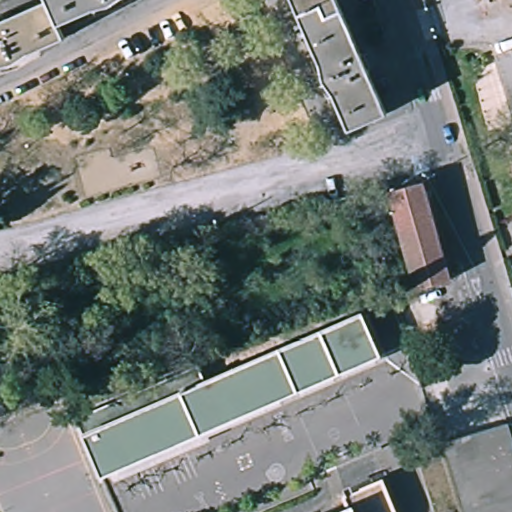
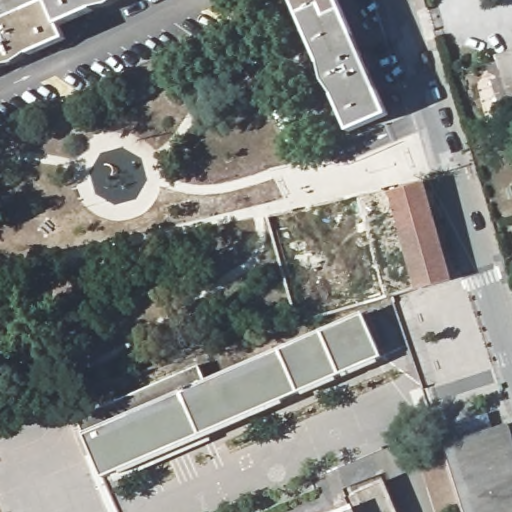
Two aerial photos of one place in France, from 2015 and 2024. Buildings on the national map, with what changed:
unchanged [(93,7),(58,22),(64,37),(29,51),(12,62),(0,65),(0,21),(48,0),(115,0),(111,3),(93,7)]
unchanged [(349,129),(336,97),(324,80),(320,62),(293,0),(337,0),(386,114),(349,129)]
unchanged [(512,51),(512,107),(496,56),(512,51)]
unchanged [(451,284),(418,293),(389,195),(422,187),(451,284)]
unchanged [(375,362),(98,481),(72,422),(193,370),(200,387),(356,318),(375,362)]
unchanged [(447,432),(506,413),(512,433),(512,512),(471,512),(447,432)]
unchanged [(388,512),(345,512),(341,501),(379,485),(388,512)]

